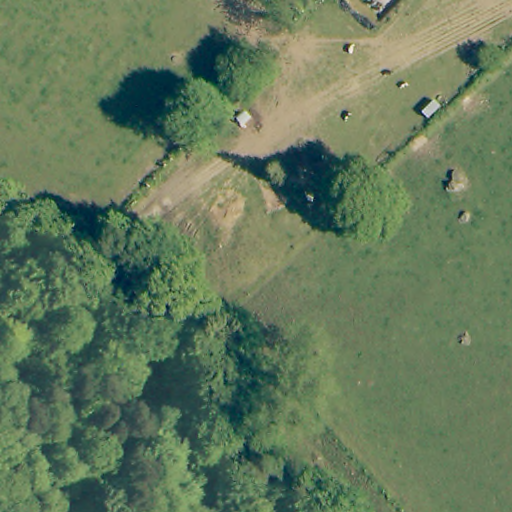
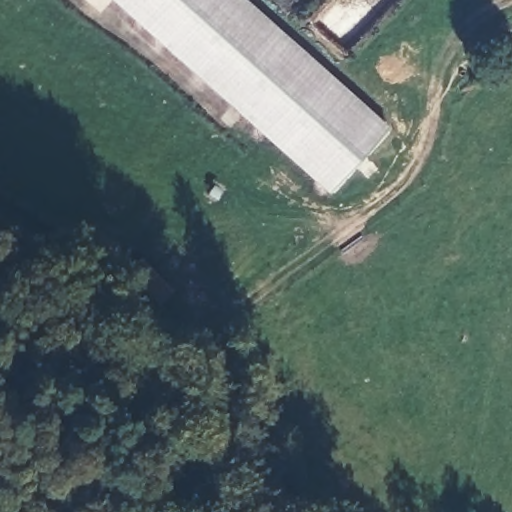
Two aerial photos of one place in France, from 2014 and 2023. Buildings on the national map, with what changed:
new [(383,135),(328,195),(113,0),(235,0),(383,135)]

